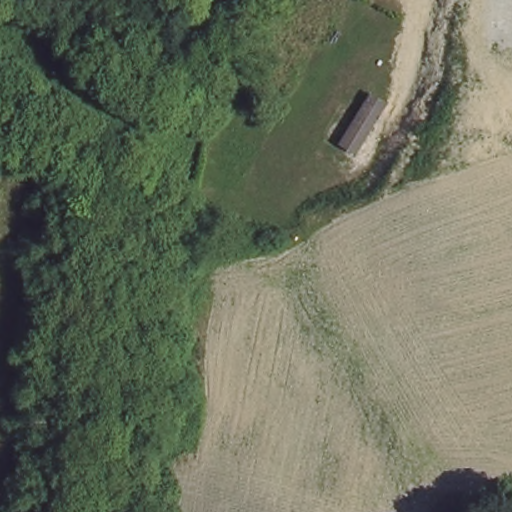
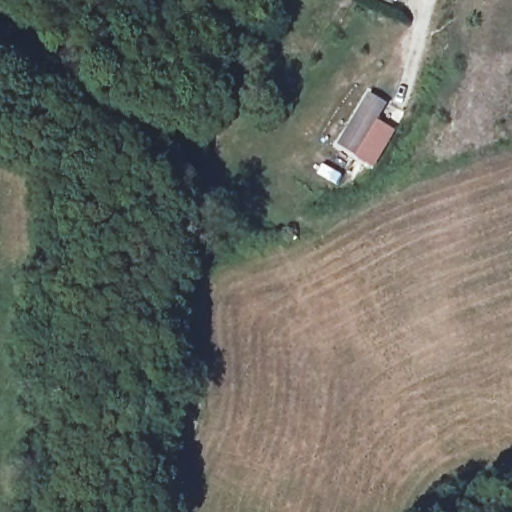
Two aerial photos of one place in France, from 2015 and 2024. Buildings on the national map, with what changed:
new [(393,8),(373,0),(396,0),(393,8)]
new [(369,92),(386,104),(377,120),(396,132),(372,170),(335,147),(369,92)]

